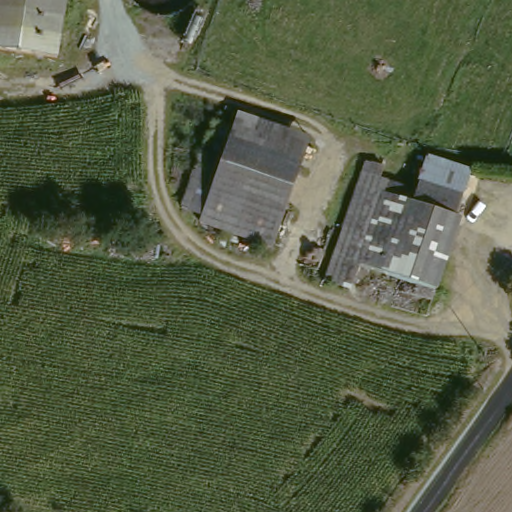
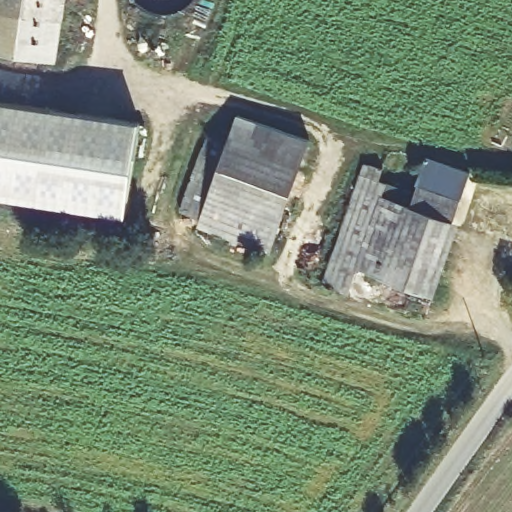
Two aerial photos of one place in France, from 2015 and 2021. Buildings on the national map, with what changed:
unchanged [(0,37),(0,0),(58,0),(51,46),(0,37)]
new [(138,131),(127,221),(0,205),(0,114),(138,131)]
unchanged [(306,143),(282,209),(215,186),(231,143),(239,121),(306,143)]
unchanged [(215,186),(282,209),(269,247),(200,223),(202,214),(183,207),(209,135),(231,143),(215,186)]
unchanged [(381,280),(349,269),(339,293),(316,285),(353,187),(364,155),(378,158),(374,171),(412,184),(381,280)]
unchanged [(420,159),(463,173),(454,199),(412,184),(420,159)]
unchanged [(420,294),(381,280),(412,184),(454,199),(420,294)]

